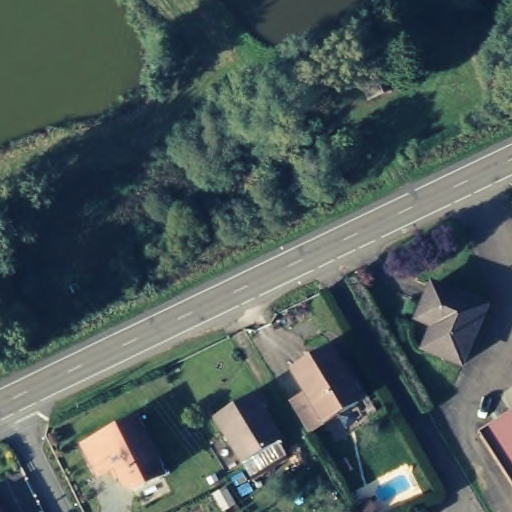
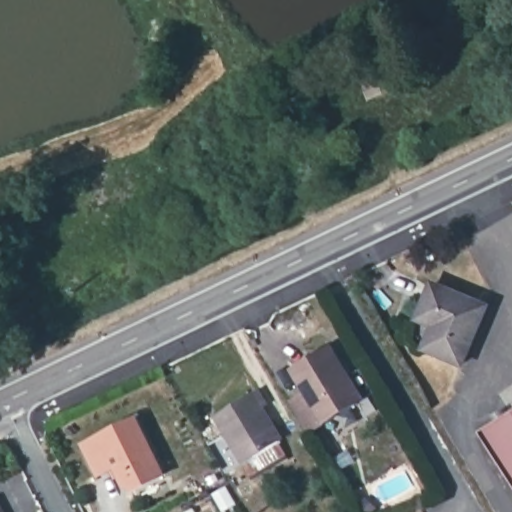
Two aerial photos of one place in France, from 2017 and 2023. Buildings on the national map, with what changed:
unchanged [(463,363),(424,347),(434,324),(419,317),(424,306),(434,284),(459,295),(487,307),(463,363)]
unchanged [(288,400),(301,391),(288,368),(327,345),(346,374),(351,372),(364,393),(356,399),(306,429),(288,400)]
unchanged [(254,388),(264,403),(260,406),(279,437),(241,460),(213,414),(254,388)]
unchanged [(512,409),(512,466),(501,473),(475,434),(512,409)]
unchanged [(135,493),(121,488),(113,471),(95,478),(78,443),(136,414),(167,476),(135,493)]
unchanged [(512,490),(501,473),(512,466),(512,490)]
unchanged [(3,512),(0,512),(0,506),(3,512)]

